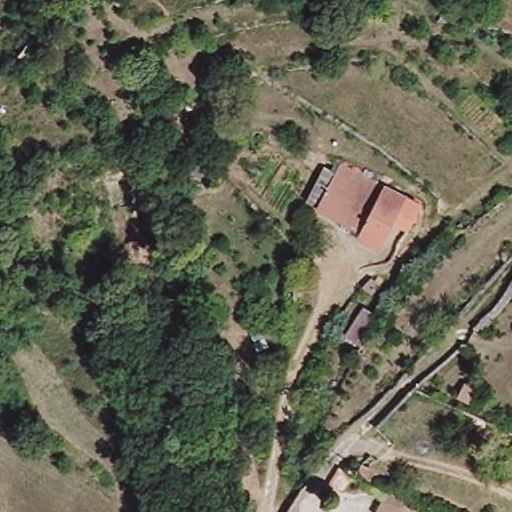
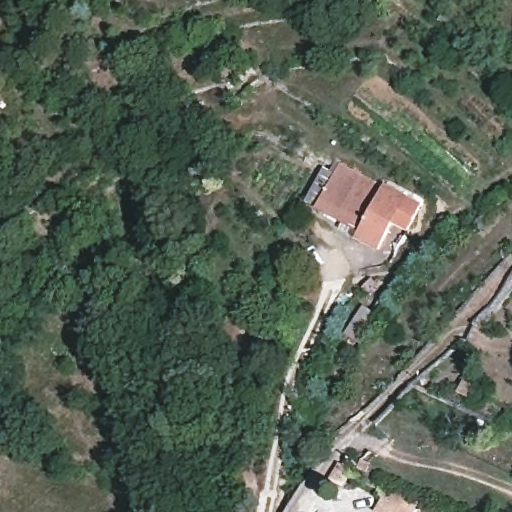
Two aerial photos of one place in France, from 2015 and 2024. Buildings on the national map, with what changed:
unchanged [(334,229),(339,220),(319,209),(307,203),(324,168),(335,174),(340,163),(421,205),(407,232),(392,224),(377,251),(354,239),(334,229)]
unchanged [(512,275),(512,283),(508,280),(512,275)]
unchanged [(379,313),(364,341),(347,332),(362,305),(379,313)]
unchanged [(462,373),(479,382),(470,395),(455,387),(462,373)]
unchanged [(334,471),(345,455),(359,461),(347,478),(334,471)]
unchanged [(369,505),(381,482),(404,492),(415,498),(407,512),(383,512),(369,505)]

